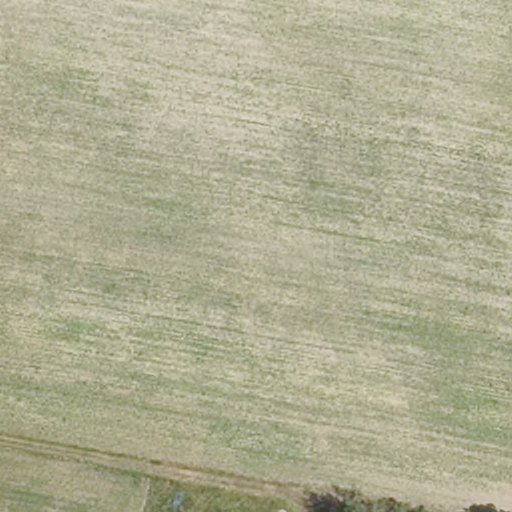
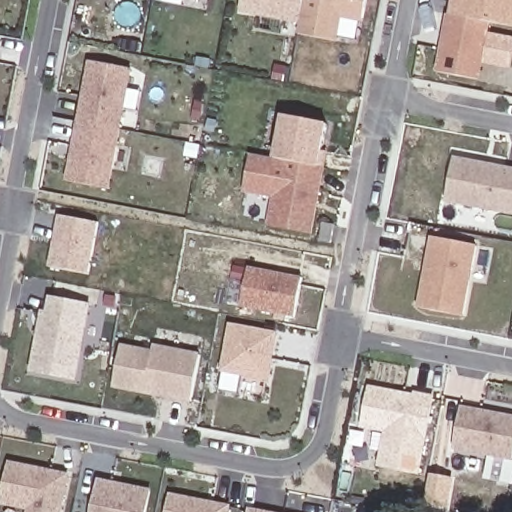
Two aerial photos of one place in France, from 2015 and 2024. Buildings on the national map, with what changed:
new [(362,21),(344,18),(339,43),(297,35),(299,23),(239,12),(242,0),(366,0),(362,21)]
new [(449,0),(512,0),(512,26),(492,21),(447,14),(449,0)]
new [(479,80),(436,72),(447,14),(492,21),(479,80)]
new [(109,190),(65,182),(88,60),(131,69),(109,190)]
new [(319,165),(278,158),(286,117),(329,124),(319,165)]
new [(324,168),(313,234),(271,226),(277,197),(245,191),(253,154),(324,168)]
new [(445,204),(454,157),(512,167),(512,216),(445,204)]
new [(89,274),(50,267),(59,216),(99,224),(89,274)]
new [(460,314),(421,307),(434,237),(475,244),(460,314)]
new [(294,318),(242,307),(249,268),(301,278),(294,318)]
new [(77,381),(28,372),(39,310),(47,311),(50,297),(91,304),(77,381)]
new [(269,379),(222,371),(230,325),(277,335),(269,379)]
new [(189,404),(114,391),(123,346),(153,351),(154,344),(199,355),(189,404)]
new [(420,474),(379,467),(384,433),(361,429),(369,387),(414,394),(414,392),(434,395),(420,474)]
new [(454,450),(462,406),(512,415),(512,461),(454,450)]
new [(67,475),(60,512),(29,512),(29,509),(3,504),(10,465),(67,475)]
new [(149,491),(145,512),(93,512),(99,481),(149,491)]
new [(165,512),(169,495),(229,508),(228,512),(165,512)]

